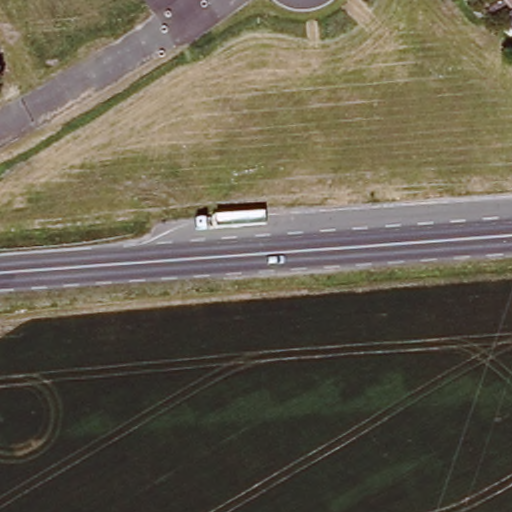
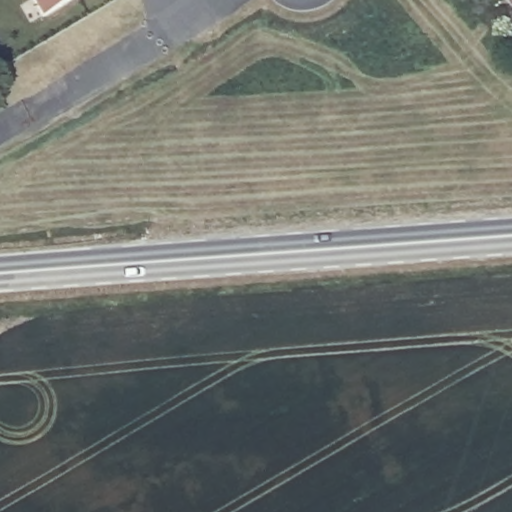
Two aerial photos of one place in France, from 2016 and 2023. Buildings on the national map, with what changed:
new [(32,0),(74,0),(42,17),(32,0)]

